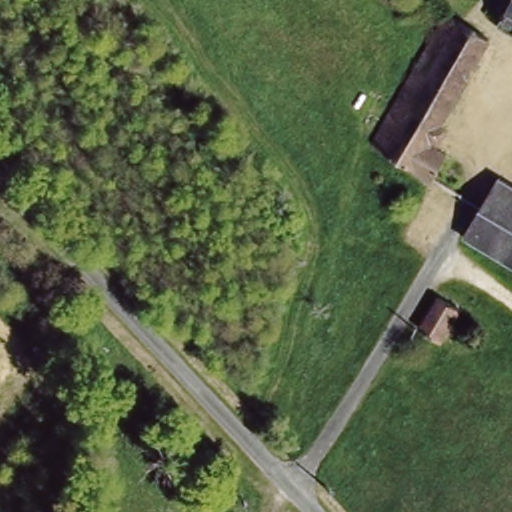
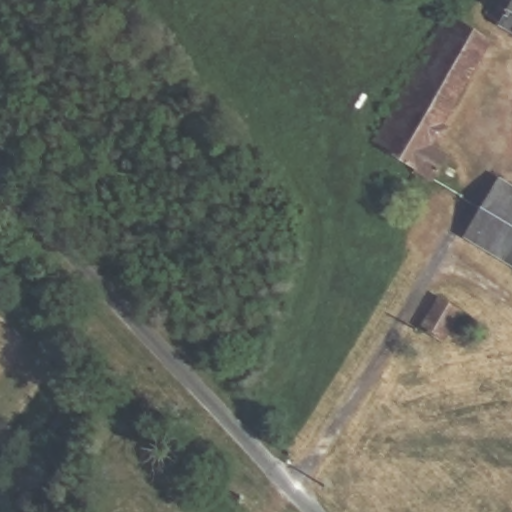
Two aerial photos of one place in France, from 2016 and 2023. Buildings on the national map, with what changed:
unchanged [(493,13),(500,0),(512,0),(512,25),(493,13)]
unchanged [(379,147),(448,13),(485,34),(432,141),(451,151),(437,178),(379,147)]
unchanged [(468,241),(498,184),(512,191),(512,240),(503,259),(468,241)]
unchanged [(503,259),(512,240),(512,264),(503,259)]
unchanged [(423,326),(439,296),(462,310),(446,336),(423,326)]

